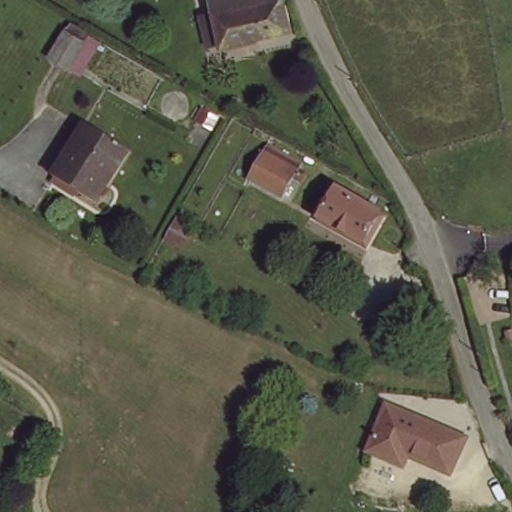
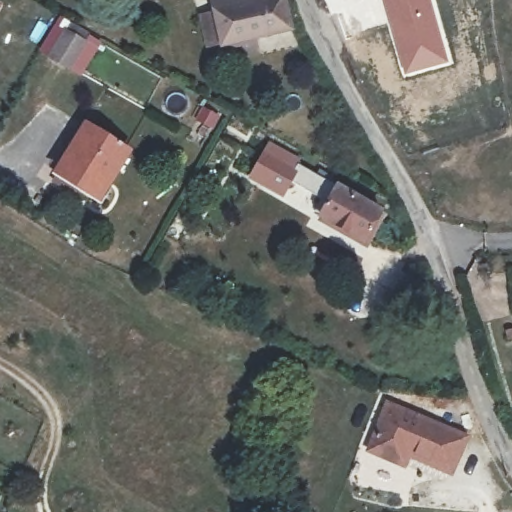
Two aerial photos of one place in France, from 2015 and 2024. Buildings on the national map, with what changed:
unchanged [(210,12),(224,9),(223,6),(225,6),(250,0),(294,0),(300,26),(232,41),(231,39),(217,41),(210,12)]
unchanged [(225,6),(223,0),(250,0),(225,6)]
new [(452,64),(402,78),(380,0),(432,0),(452,64)]
unchanged [(48,57),(63,33),(67,26),(85,36),(80,42),(65,67),(48,57)]
unchanged [(57,176),(62,165),(90,121),(132,147),(100,197),(80,185),(77,189),(57,176)]
unchanged [(250,177),(264,152),(268,144),(298,161),(295,167),(280,193),(250,177)]
unchanged [(363,241),(319,216),(336,186),(380,212),(363,241)]
unchanged [(372,441),(392,395),(469,429),(454,463),(410,445),(405,456),(372,441)]

